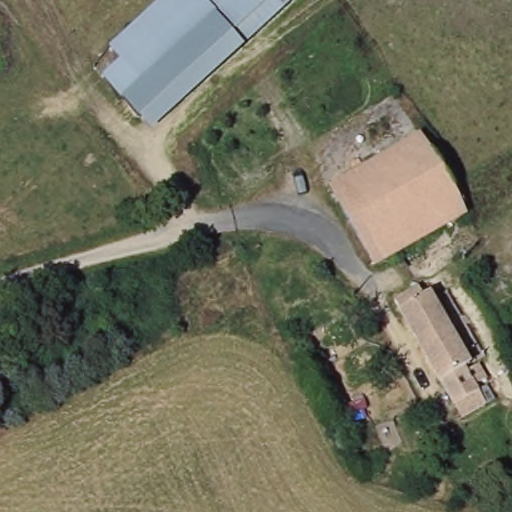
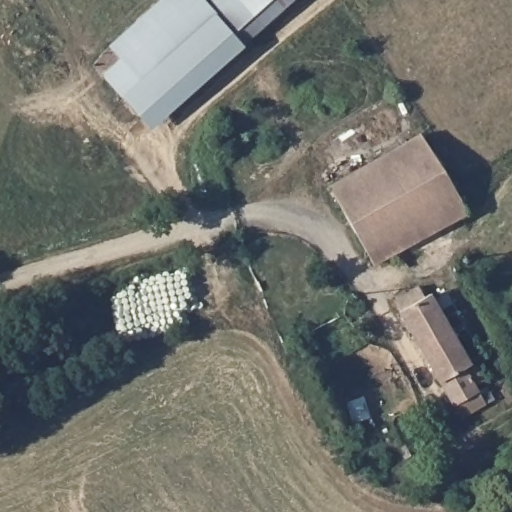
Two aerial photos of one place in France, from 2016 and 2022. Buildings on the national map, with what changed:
unchanged [(126,95),(124,93),(107,73),(126,57),(114,44),(166,0),(209,0),(213,5),(221,13),(126,95)]
unchanged [(221,13),(213,5),(209,0),(277,0),(238,34),(221,13)]
unchanged [(221,13),(238,34),(249,45),(152,127),(126,95),(221,13)]
unchanged [(469,217),(374,268),(328,186),(421,134),(469,217)]
unchanged [(422,304),(427,301),(431,307),(439,301),(449,320),(440,325),(449,339),(465,330),(483,362),(476,367),(486,386),(475,392),(483,409),(463,420),(393,304),(415,294),(422,304)]

